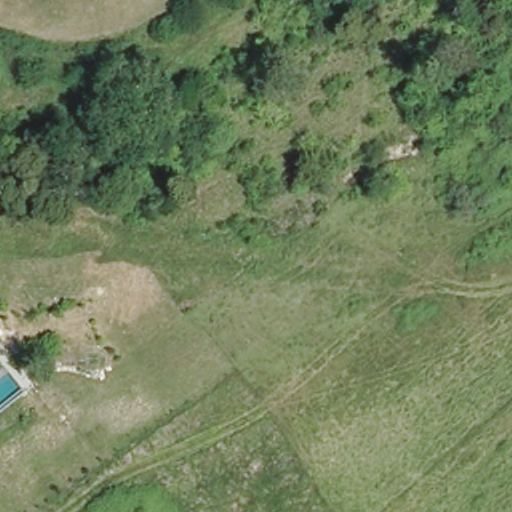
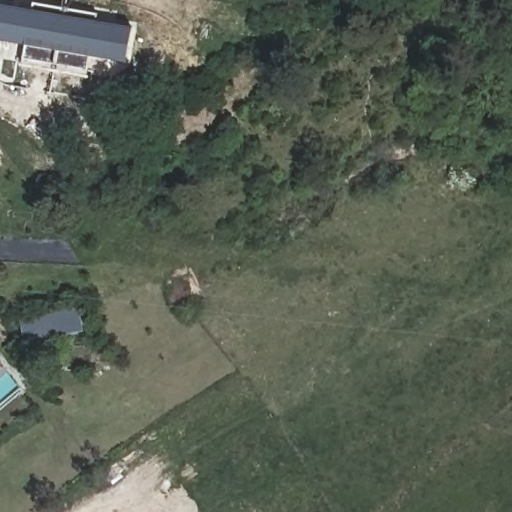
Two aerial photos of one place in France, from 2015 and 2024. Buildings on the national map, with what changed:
new [(0,6),(132,29),(126,62),(89,55),(87,69),(26,59),(28,45),(0,40),(0,6)]
new [(25,344),(19,319),(79,308),(84,332),(25,344)]
new [(0,363),(4,368),(0,371),(0,363)]

